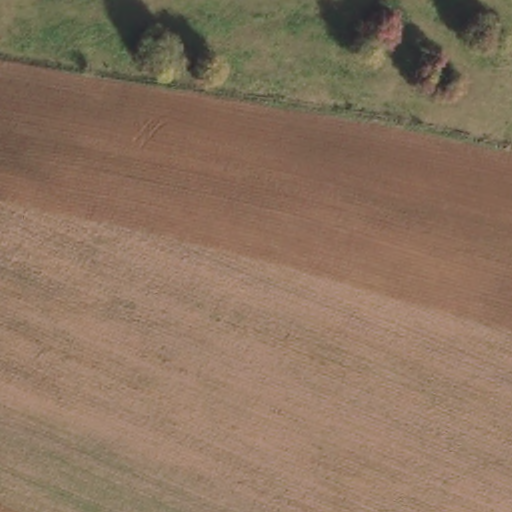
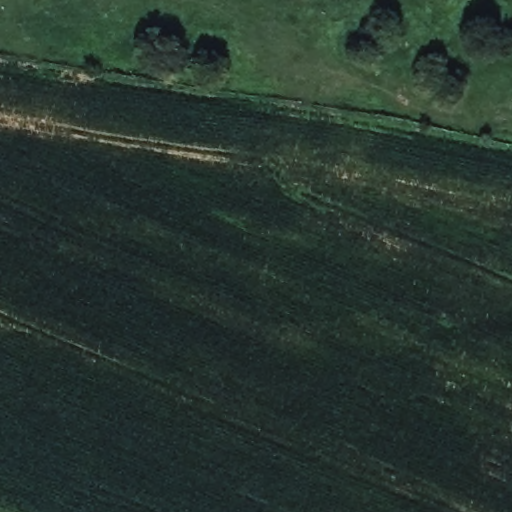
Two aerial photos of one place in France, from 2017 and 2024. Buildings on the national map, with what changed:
[]

